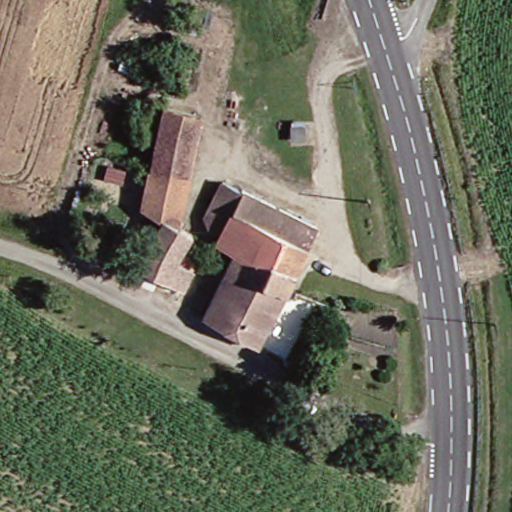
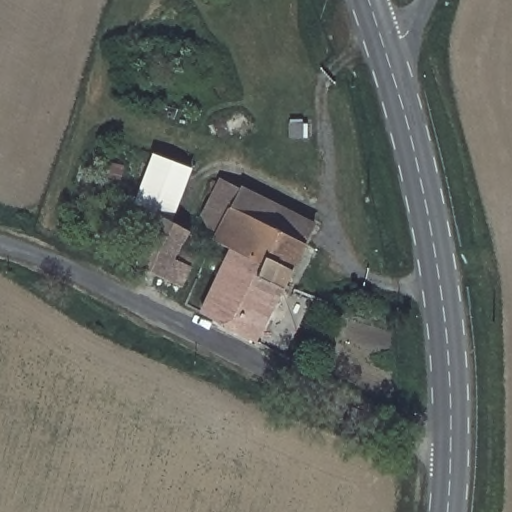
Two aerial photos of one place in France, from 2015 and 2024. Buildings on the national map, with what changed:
unchanged [(151,210),(140,205),(155,110),(193,118),(174,221),(151,210)]
unchanged [(200,212),(223,178),(240,189),(212,239),(200,212)]
unchanged [(212,239),(240,189),(271,205),(311,227),(301,245),(249,347),(196,322),(193,321),(230,250),(212,239)]
unchanged [(198,238),(175,286),(129,262),(151,210),(174,221),(198,238)]

